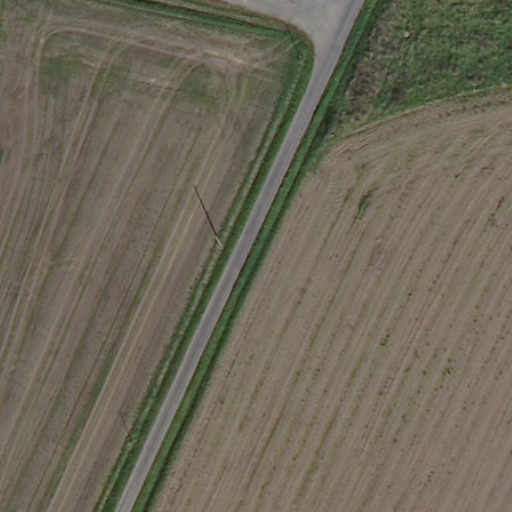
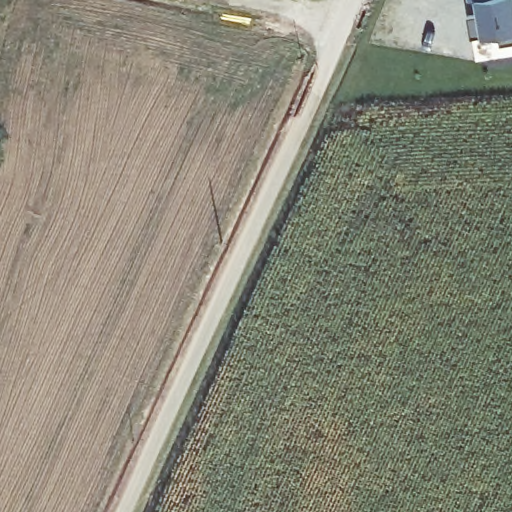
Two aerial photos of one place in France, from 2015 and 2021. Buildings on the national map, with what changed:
new [(512,45),(499,47),(498,36),(470,40),(467,18),(479,16),(477,1),(469,2),(469,0),(512,0),(512,45)]

